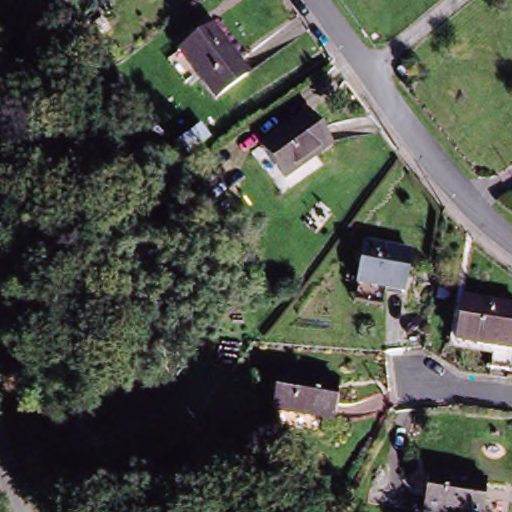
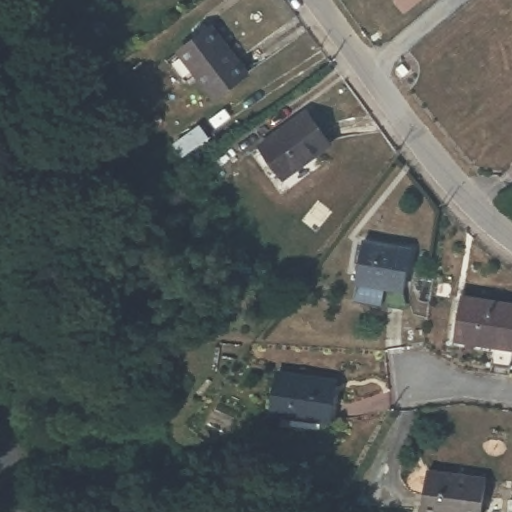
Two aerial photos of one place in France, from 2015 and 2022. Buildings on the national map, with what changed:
unchanged [(218,27),(252,75),(216,101),(182,52),(218,27)]
unchanged [(311,108),(334,141),(279,176),(257,145),(311,108)]
unchanged [(415,245),(409,286),(359,279),(365,239),(415,245)]
unchanged [(512,303),(512,347),(459,340),(465,296),(512,303)]
unchanged [(336,385),(332,425),(274,415),(281,375),(336,385)]
unchanged [(480,512),(426,512),(430,466),(486,475),(480,512)]

